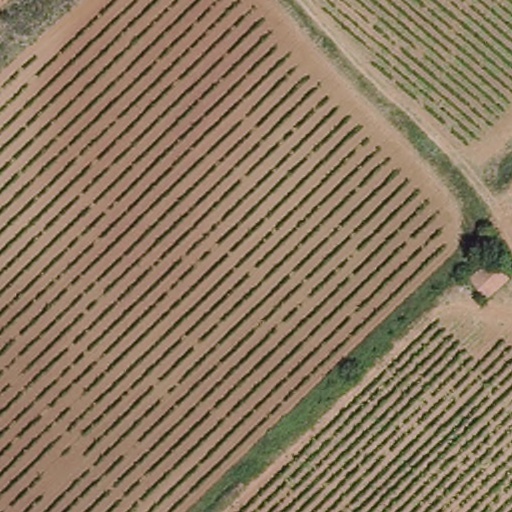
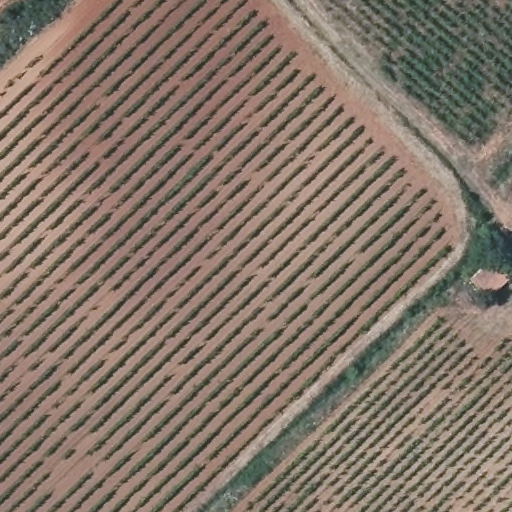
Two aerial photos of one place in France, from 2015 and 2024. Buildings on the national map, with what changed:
unchanged [(483,292),(465,272),(482,261),(488,255),(497,263),(505,272),(505,273),(483,292)]

